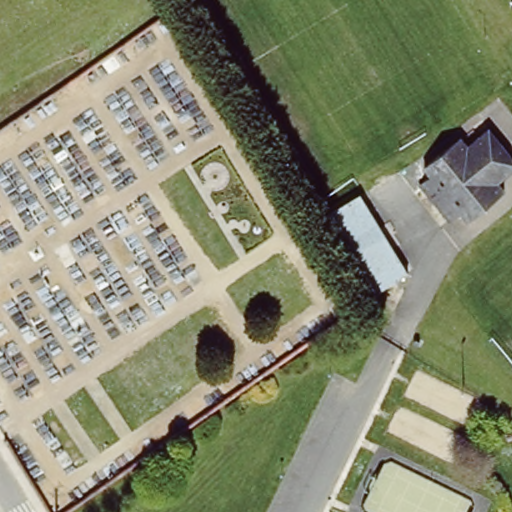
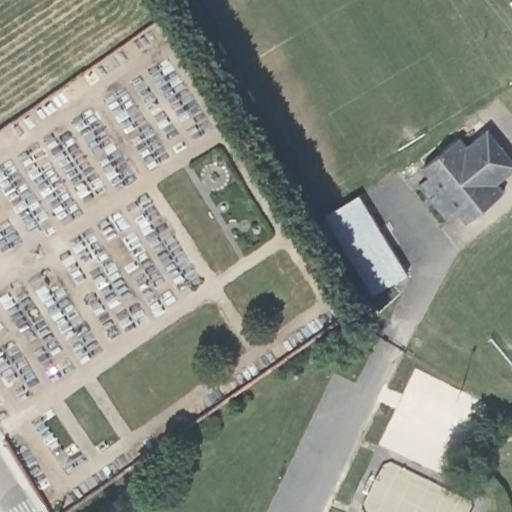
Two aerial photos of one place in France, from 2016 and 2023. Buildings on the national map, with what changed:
unchanged [(512,159),(512,180),(502,189),(470,152),(492,135),(512,159)]
unchanged [(470,152),(502,189),(508,197),(472,227),(463,216),(451,227),(422,192),(435,182),(427,173),(462,143),(470,152)]
unchanged [(408,270),(375,291),(327,214),(358,193),(408,270)]

